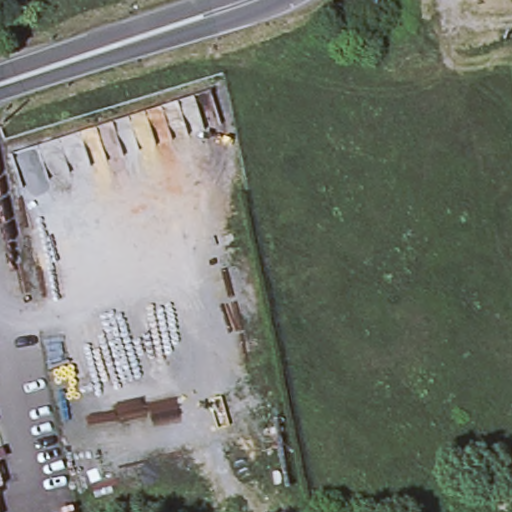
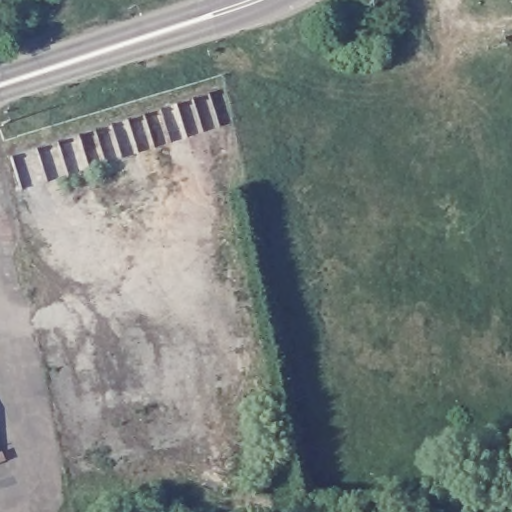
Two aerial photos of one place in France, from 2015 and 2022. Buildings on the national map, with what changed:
[]

